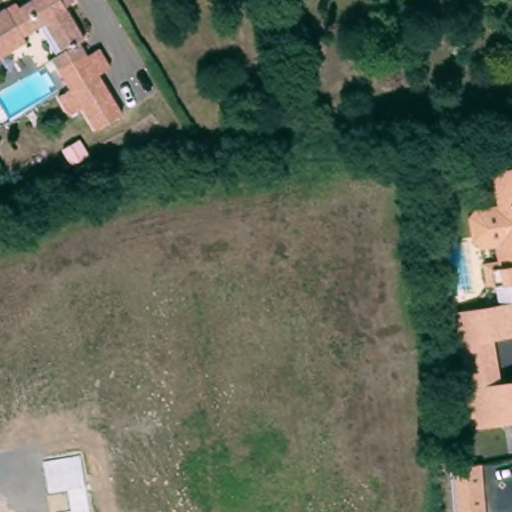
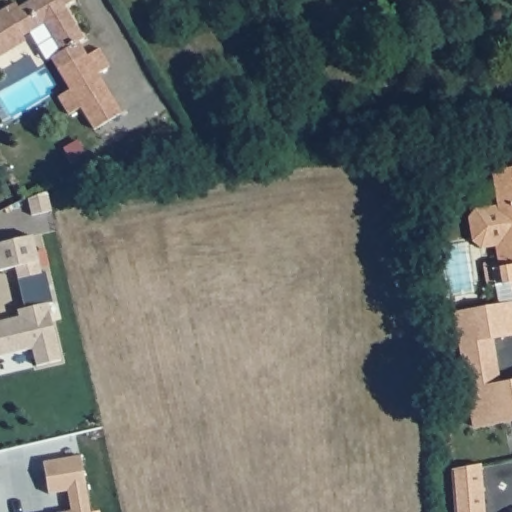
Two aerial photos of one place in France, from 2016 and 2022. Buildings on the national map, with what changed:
unchanged [(58,69),(52,58),(65,51),(46,16),(21,29),(28,40),(0,55),(0,10),(9,5),(13,11),(34,0),(80,0),(81,1),(72,6),(92,43),(97,51),(89,56),(98,72),(105,85),(75,101),(68,88),(58,69)]
unchanged [(490,266),(499,264),(498,246),(506,244),(495,171),(512,169),(512,284),(491,287),(490,266)]
unchanged [(506,244),(498,246),(482,249),(472,242),(467,218),(474,208),(500,205),(506,244)]
new [(19,314),(17,308),(25,307),(18,277),(15,266),(0,269),(0,241),(32,234),(40,271),(45,270),(52,301),(47,302),(60,359),(36,364),(32,347),(0,354),(0,319),(19,314)]
unchanged [(512,335),(493,339),(500,379),(512,376),(512,421),(471,428),(454,311),(497,304),(496,287),(512,284),(512,335)]
new [(71,511),(68,490),(48,494),(43,462),(80,455),(85,487),(89,511),(89,512),(62,512),(71,511)]
unchanged [(486,468),(489,512),(458,512),(454,473),(486,468)]

